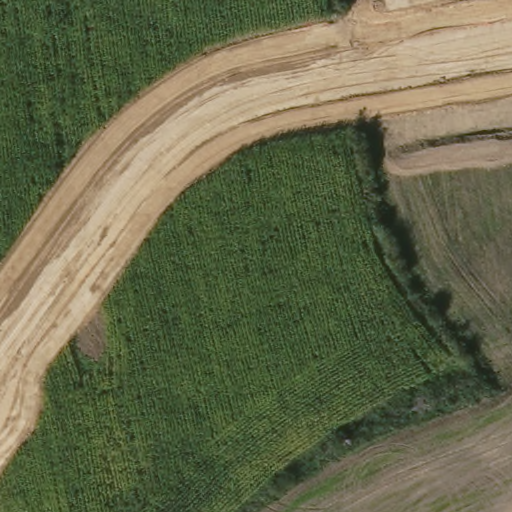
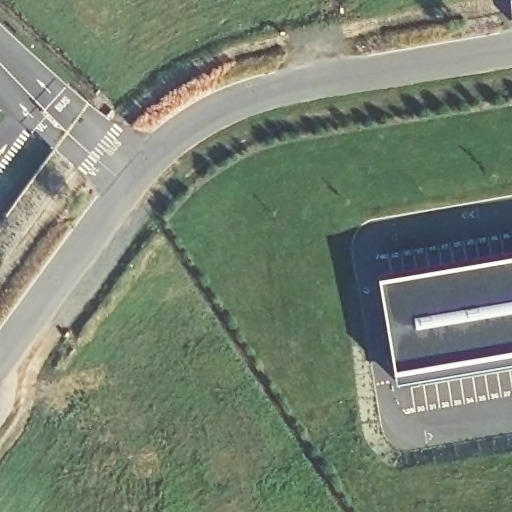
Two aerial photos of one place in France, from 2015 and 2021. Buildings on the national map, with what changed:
new [(380,289),(512,267),(512,361),(395,381),(380,289)]

